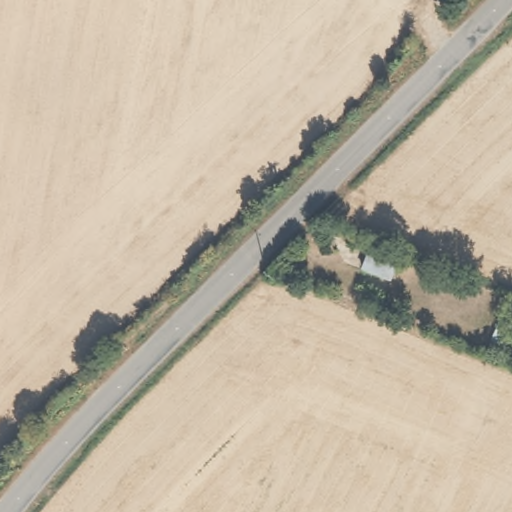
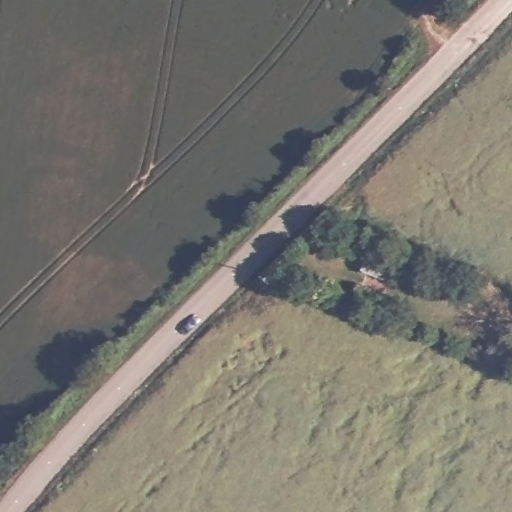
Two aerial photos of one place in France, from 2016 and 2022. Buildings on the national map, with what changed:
unchanged [(367,249),(401,260),(393,284),(361,270),(367,249)]

